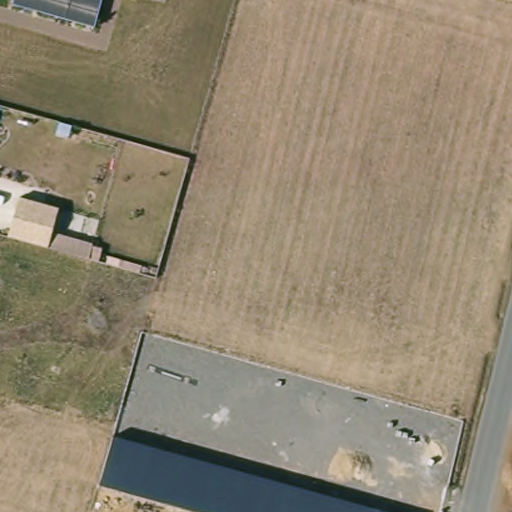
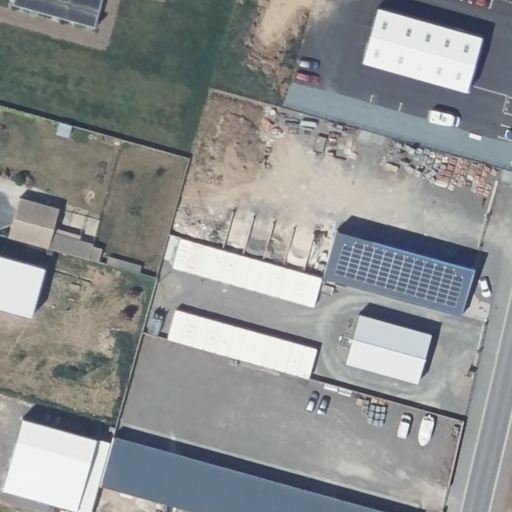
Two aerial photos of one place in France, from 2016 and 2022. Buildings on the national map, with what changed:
unchanged [(11,4),(12,0),(101,0),(94,26),(11,4)]
new [(378,10),(483,37),(469,91),(364,64),(378,10)]
unchanged [(56,230),(96,240),(90,257),(11,235),(24,195),(61,206),(56,230)]
new [(333,232),(368,241),(355,288),(320,278),(333,232)]
new [(183,241),(328,281),(319,310),(175,270),(183,241)]
new [(368,241),(471,267),(458,316),(355,288),(368,241)]
new [(35,319),(0,309),(0,257),(49,271),(35,319)]
new [(177,311),(321,351),(313,380),(168,340),(177,311)]
new [(359,318),(432,338),(419,387),(347,367),(359,318)]
unchanged [(101,483),(114,435),(386,512),(205,512),(101,483)]

